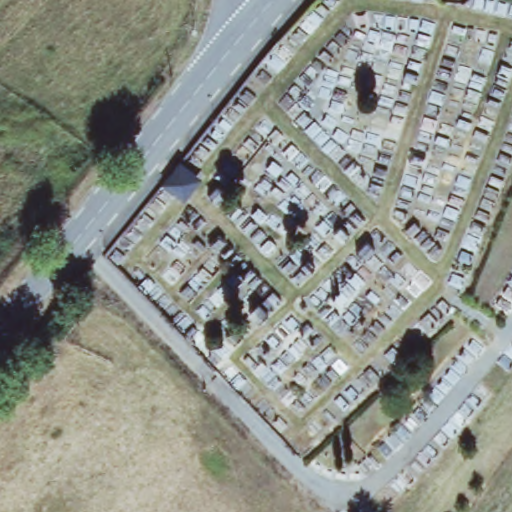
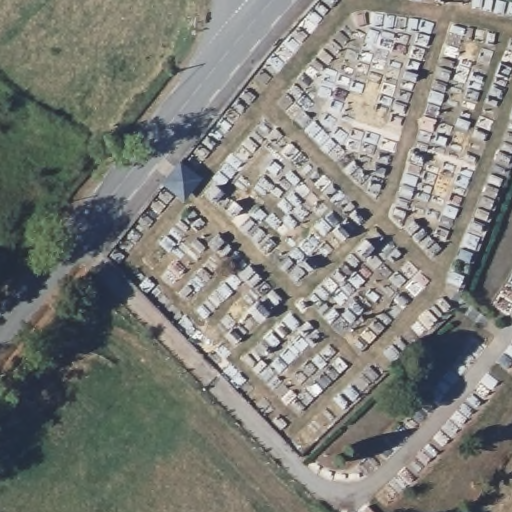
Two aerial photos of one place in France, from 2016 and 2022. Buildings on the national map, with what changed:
unchanged [(180,160),(194,171),(203,177),(187,199),(163,181),(180,160)]

